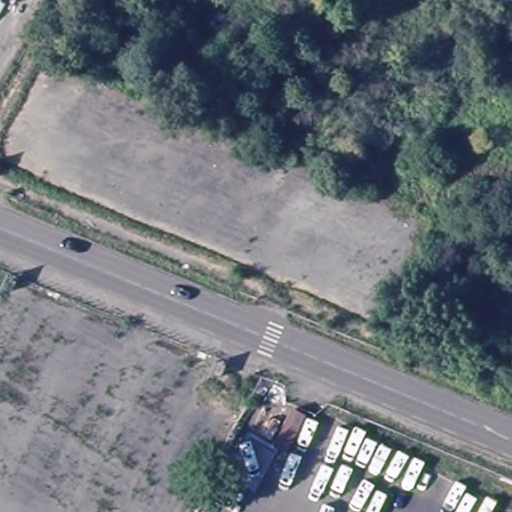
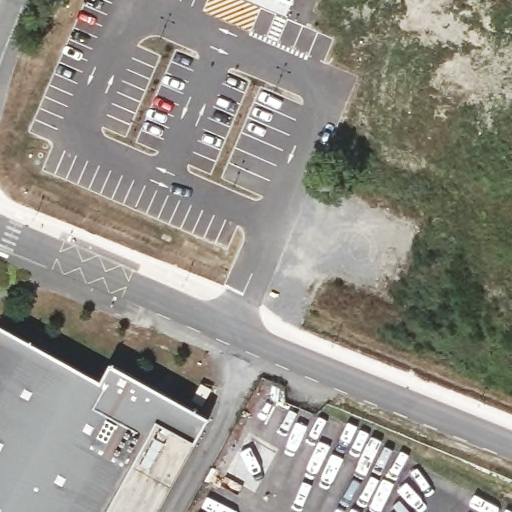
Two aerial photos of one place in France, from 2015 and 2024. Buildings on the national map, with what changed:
new [(291,5),(287,3),(281,0),(294,0),(291,5)]
new [(6,321),(107,376),(115,360),(191,401),(200,385),(210,391),(201,407),(214,413),(200,437),(163,417),(111,512),(0,512),(0,332),(6,321)]

